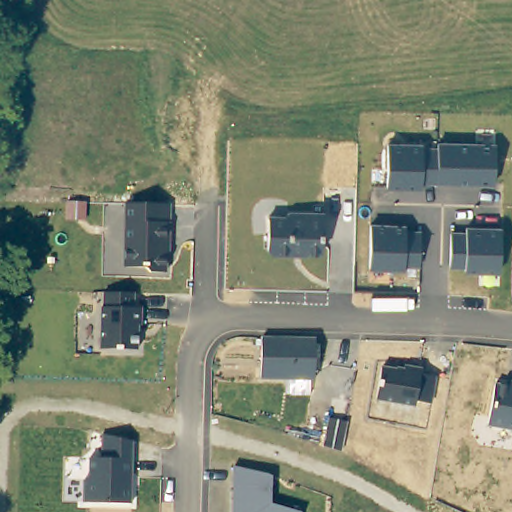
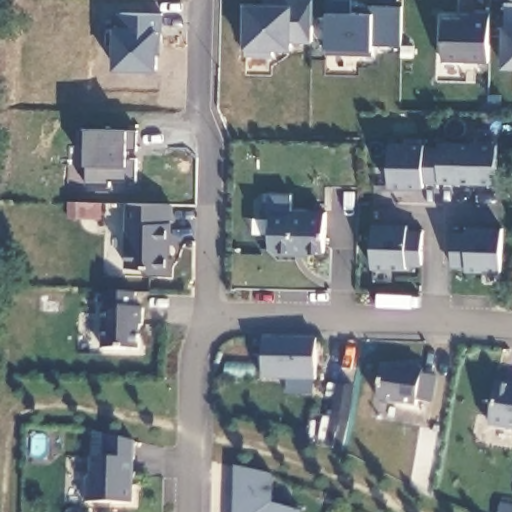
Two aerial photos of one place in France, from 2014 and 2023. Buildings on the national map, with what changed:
new [(262,4),(262,0),(312,0),(310,42),(291,42),(290,49),(271,49),(270,56),(245,56),(245,48),(245,4),(262,4)]
new [(327,13),(328,0),(350,0),(350,13),(364,13),(365,6),(401,8),(400,45),(372,45),(371,49),(371,55),(326,54),(326,49),(327,13)]
new [(503,2),(512,3),(512,69),(500,68),(502,26),(503,2)]
new [(113,47),(104,47),(105,30),(113,30),(119,30),(119,13),(162,14),(162,30),(157,31),(156,70),(112,70),(113,47)]
new [(460,17),(471,16),(471,14),(488,14),(488,62),(442,61),(443,19),(460,20),(460,17)]
new [(85,147),(81,147),(82,129),(86,129),(125,130),(137,130),(135,182),(109,181),(108,187),(85,185),(85,166),(85,147)]
unchanged [(425,143),(423,148),(437,148),(438,140),(495,143),(495,181),(425,181),(425,186),(390,186),(388,141),(425,143)]
unchanged [(168,204),(169,272),(144,271),(143,266),(124,266),(126,204),(168,204)]
unchanged [(286,214),(286,210),(325,210),(322,255),(272,254),(270,215),(286,214)]
unchanged [(467,234),(467,223),(501,225),(500,271),(464,271),(465,264),(451,265),(454,233),(467,234)]
unchanged [(404,224),(405,228),(420,228),(420,266),(405,266),(405,270),(369,270),(370,224),(404,224)]
unchanged [(102,350),(105,295),(135,296),(135,306),(141,306),(140,349),(102,350)]
unchanged [(315,338),(313,378),(263,379),(263,337),(315,338)]
unchanged [(403,369),(405,364),(423,367),(422,374),(438,376),(432,404),(418,401),(416,408),(376,400),(383,365),(403,369)]
unchanged [(506,386),(508,378),(512,379),(512,431),(488,427),(497,385),(506,386)]
unchanged [(341,450),(325,447),(336,384),(354,386),(341,450)]
unchanged [(130,501),(83,500),(84,479),(89,475),(89,460),(103,460),(104,439),(132,441),(130,501)]
unchanged [(272,475),(272,504),(301,512),(232,512),(233,466),(272,475)]

